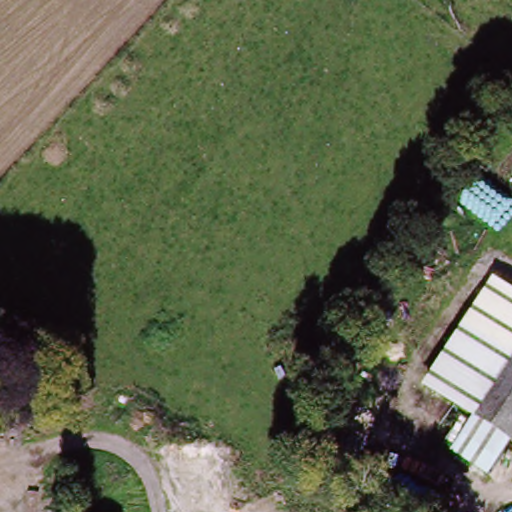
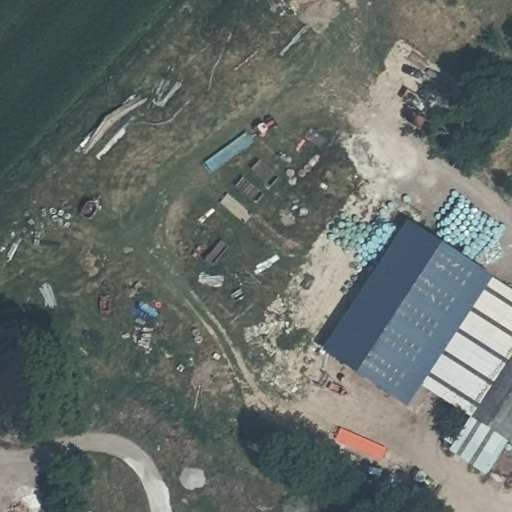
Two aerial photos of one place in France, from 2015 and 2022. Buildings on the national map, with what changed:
new [(423,385),(409,410),(324,358),(409,222),(493,276),(423,385)]
unchanged [(512,360),(476,418),(423,385),(493,276),(512,288),(512,360)]
unchanged [(487,480),(451,459),(512,360),(512,439),(509,445),(487,480)]
unchanged [(512,447),(509,445),(512,439),(512,447)]

